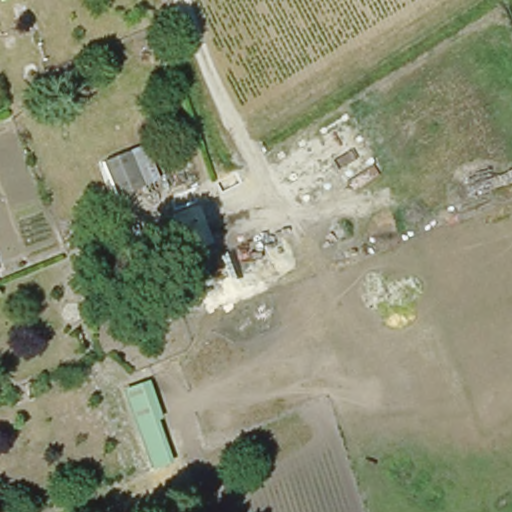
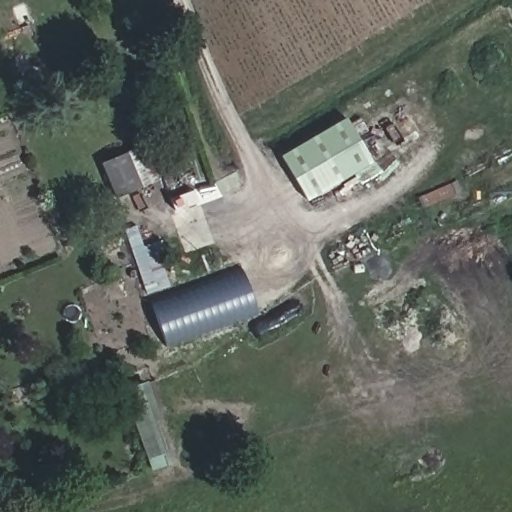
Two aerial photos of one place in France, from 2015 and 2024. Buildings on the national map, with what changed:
new [(307,198),(281,154),(345,115),(372,160),(307,198)]
unchanged [(100,165),(124,154),(138,186),(115,197),(100,165)]
new [(137,226),(143,246),(156,240),(171,284),(146,292),(126,230),(137,226)]
new [(167,348),(150,303),(240,268),(258,315),(167,348)]
unchanged [(150,463),(122,393),(149,381),(163,417),(155,420),(168,455),(150,463)]

